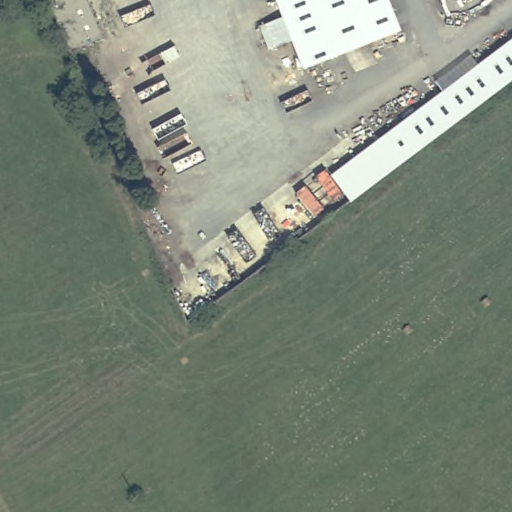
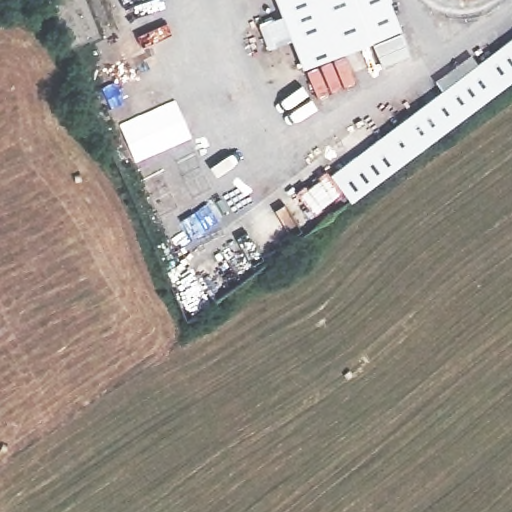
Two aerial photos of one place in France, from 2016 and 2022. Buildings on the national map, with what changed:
unchanged [(303,59),(279,0),(389,0),(398,22),(303,59)]
unchanged [(380,134),(404,114),(512,35),(512,73),(423,140),(400,158),(380,134)]
unchanged [(400,158),(355,192),(334,167),(380,134),(400,158)]

